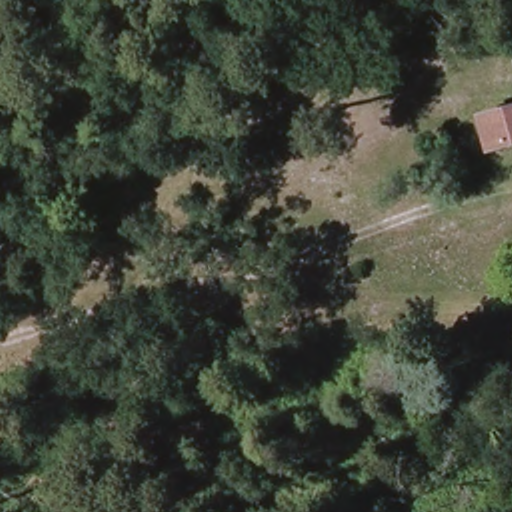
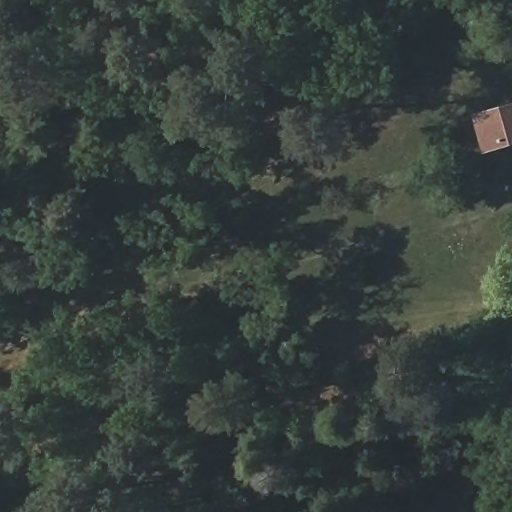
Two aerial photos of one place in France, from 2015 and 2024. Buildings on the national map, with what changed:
unchanged [(512,103),(512,148),(481,155),(468,113),(512,103)]
unchanged [(179,439),(172,414),(221,404),(226,429),(179,439)]
unchanged [(496,486),(512,490),(512,512),(489,512),(496,486)]

